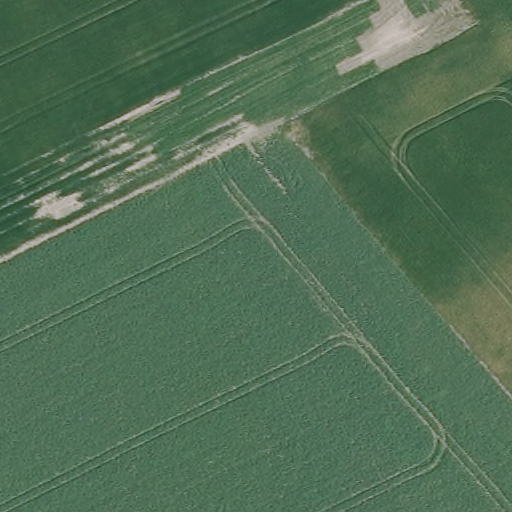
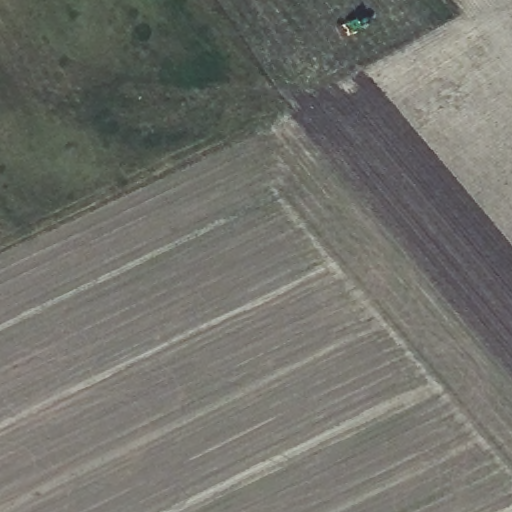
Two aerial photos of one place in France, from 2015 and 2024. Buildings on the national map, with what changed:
[]

